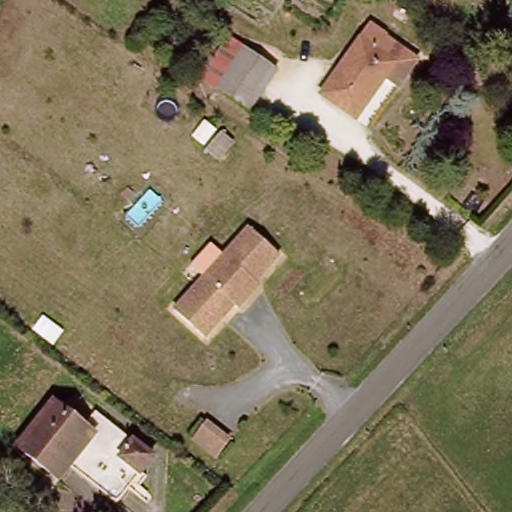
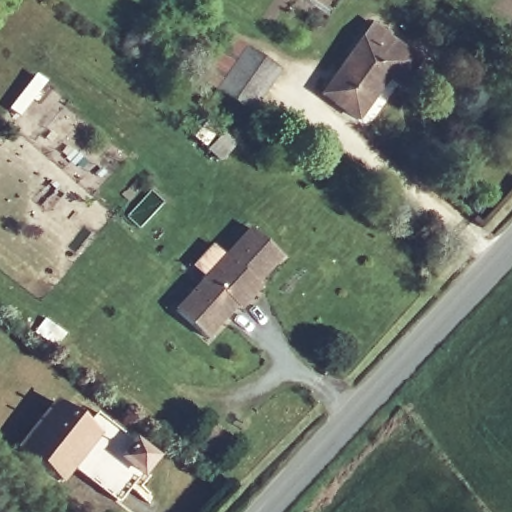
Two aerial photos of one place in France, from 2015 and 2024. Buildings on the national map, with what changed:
unchanged [(321,91),(368,20),(400,43),(417,54),(398,82),(384,73),(355,114),(321,91)]
unchanged [(277,67),(251,104),(220,81),(245,45),(277,67)]
unchanged [(228,154),(216,145),(228,131),(241,140),(228,154)]
unchanged [(276,257),(263,272),(266,275),(247,296),(235,310),(231,307),(215,325),(202,339),(172,312),(182,301),(247,230),(276,257)]
unchanged [(94,435),(61,480),(19,449),(51,405),(94,435)]
unchanged [(228,452),(205,435),(219,417),(241,434),(228,452)]
unchanged [(125,462),(138,443),(156,456),(143,474),(125,462)]

